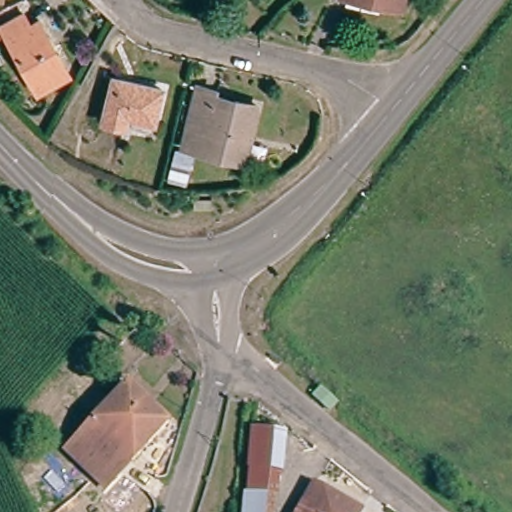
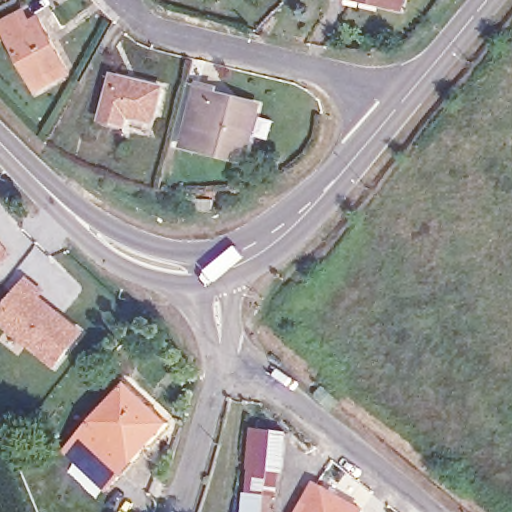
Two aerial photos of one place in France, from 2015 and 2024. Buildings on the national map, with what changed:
unchanged [(409,11),(370,3),(356,0),(411,0),(409,11)]
unchanged [(0,44),(0,35),(15,22),(25,34),(33,26),(56,51),(54,52),(74,75),(46,100),(0,44)]
unchanged [(111,75),(160,78),(156,117),(130,114),(129,124),(104,122),(111,75)]
unchanged [(181,148),(197,81),(222,86),(220,94),(264,102),(245,165),(194,151),(187,184),(167,179),(175,146),(181,148)]
new [(0,265),(0,241),(11,256),(0,265)]
new [(0,309),(27,278),(45,293),(41,296),(85,331),(54,369),(0,325),(0,309)]
unchanged [(79,467),(63,452),(76,437),(93,419),(86,412),(96,402),(103,409),(127,385),(141,399),(165,425),(118,478),(105,493),(79,467)]
unchanged [(287,431),(280,512),(247,512),(256,428),(287,431)]
unchanged [(314,485),(359,511),(359,512),(305,512),(301,509),(314,485)]
demolished [(95,512),(85,512),(93,509),(95,512)]

